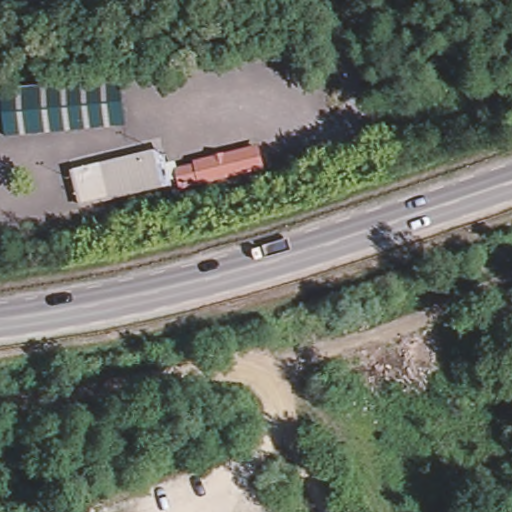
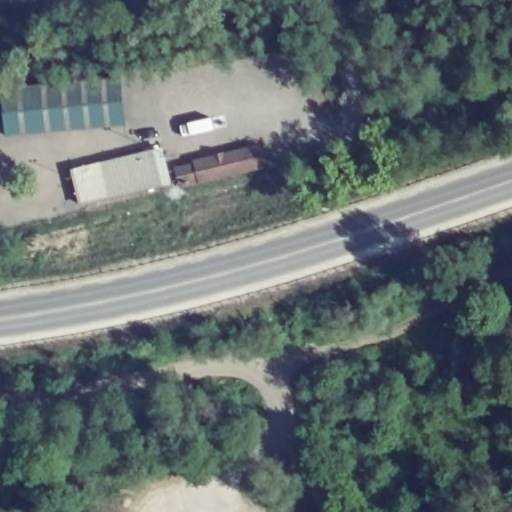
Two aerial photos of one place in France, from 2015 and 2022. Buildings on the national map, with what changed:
unchanged [(72,79),(105,76),(123,74),(127,111),(128,121),(103,124),(8,133),(8,129),(4,86),(72,79)]
unchanged [(194,153),(213,148),(212,145),(221,143),(221,145),(238,141),(254,136),(255,141),(259,156),(180,177),(176,163),(195,158),(194,153)]
unchanged [(152,145),(160,143),(165,163),(168,173),(78,197),(70,166),(152,145)]

